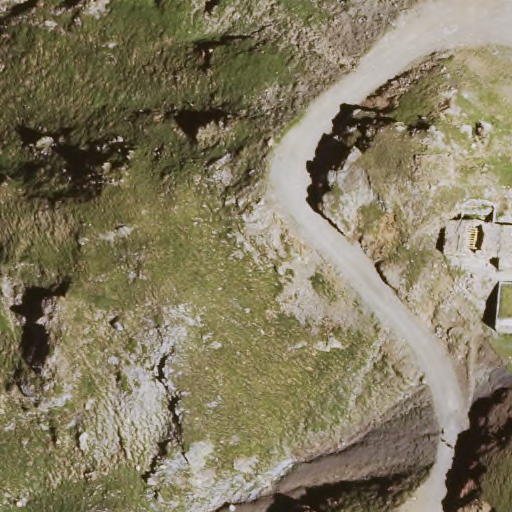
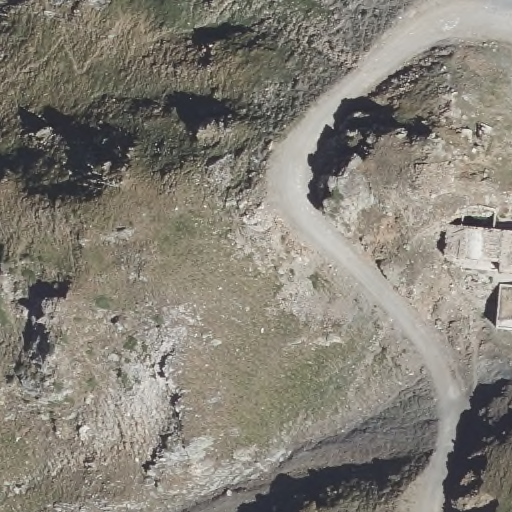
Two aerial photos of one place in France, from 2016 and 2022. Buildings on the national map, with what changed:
unchanged [(506,264),(486,263),(450,260),(452,225),(512,231),(512,275),(504,275),(506,264)]
unchanged [(503,286),(512,287),(512,329),(500,327),(503,286)]

